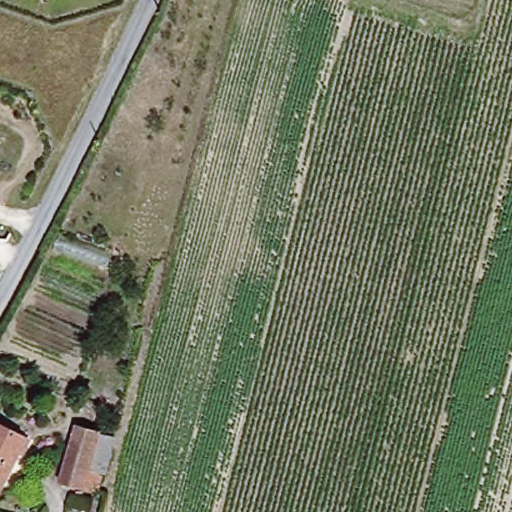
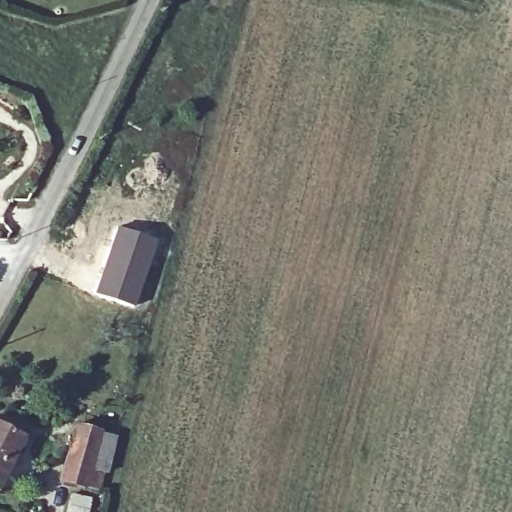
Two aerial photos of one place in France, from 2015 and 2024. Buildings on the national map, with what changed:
new [(116,226),(157,238),(134,307),(92,292),(116,226)]
unchanged [(24,436),(0,480),(0,423),(24,436)]
unchanged [(102,475),(98,491),(103,493),(97,512),(73,512),(64,509),(66,488),(54,485),(71,426),(100,432),(88,468),(102,475)]

